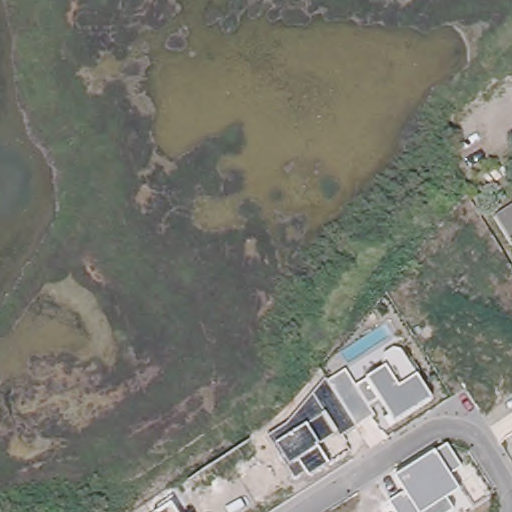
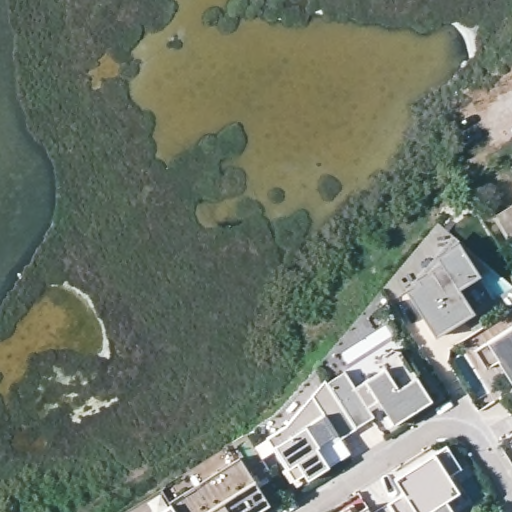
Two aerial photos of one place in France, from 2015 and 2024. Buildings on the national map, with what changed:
unchanged [(512,202),(512,241),(495,212),(512,202)]
new [(481,277),(460,290),(475,313),(436,338),(408,293),(424,284),(421,279),(443,265),(438,257),(461,244),(481,277)]
new [(498,360),(485,368),(475,350),(487,342),(512,326),(512,385),(498,360)]
unchanged [(305,474),(296,480),(269,438),(290,425),(327,381),(348,370),(358,385),(387,366),(386,357),(395,350),(405,353),(435,399),(395,422),(381,402),(369,409),(375,417),(339,440),(335,437),(318,449),(328,465),(309,479),(305,474)]
new [(510,413),(500,398),(512,389),(512,412),(510,413)]
unchanged [(405,494),(394,477),(448,445),(464,469),(450,477),(458,491),(447,499),(454,511),(453,512),(395,512),(390,503),(405,494)]
new [(239,458),(254,481),(270,505),(258,512),(177,512),(172,504),(170,501),(239,458)]
new [(331,512),(346,503),(351,511),(364,503),(367,510),(387,497),(390,503),(395,512),(331,512)]
unchanged [(177,512),(160,512),(172,504),(177,512)]

